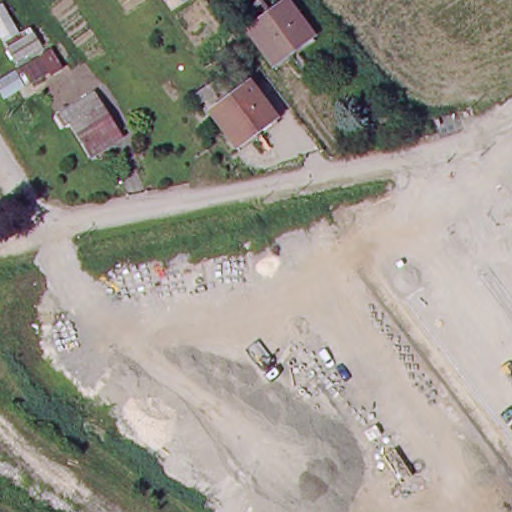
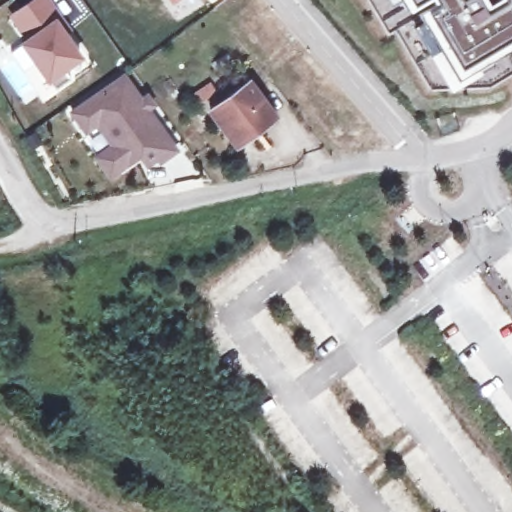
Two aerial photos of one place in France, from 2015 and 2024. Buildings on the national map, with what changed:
new [(60,17),(69,29),(64,33),(80,56),(64,67),(71,78),(55,89),(22,42),(29,38),(12,15),(33,0),(48,0),(60,17)]
new [(170,3),(168,0),(175,0),(170,3)]
new [(429,89),(395,29),(386,33),(367,0),(400,0),(405,9),(423,0),(431,0),(432,2),(417,10),(457,77),(512,44),(512,73),(490,86),(429,89)]
new [(405,9),(400,0),(423,0),(405,9)]
new [(485,1),(488,0),(512,0),(512,44),(457,77),(417,10),(432,2),(431,0),(484,0),(485,1)]
demolished [(273,22),(290,11),(315,44),(276,73),(242,25),(263,10),(273,22)]
demolished [(41,43),(15,61),(7,46),(32,30),(41,43)]
new [(123,72),(141,95),(145,91),(156,106),(150,110),(180,150),(162,164),(157,159),(147,168),(138,158),(110,179),(92,155),(108,143),(97,127),(85,135),(67,111),(123,72)]
unchanged [(275,117),(235,145),(210,110),(248,82),(275,117)]
unchanged [(214,91),(197,103),(192,94),(209,83),(214,91)]
demolished [(113,131),(86,148),(65,116),(60,119),(53,109),(88,87),(113,131)]

